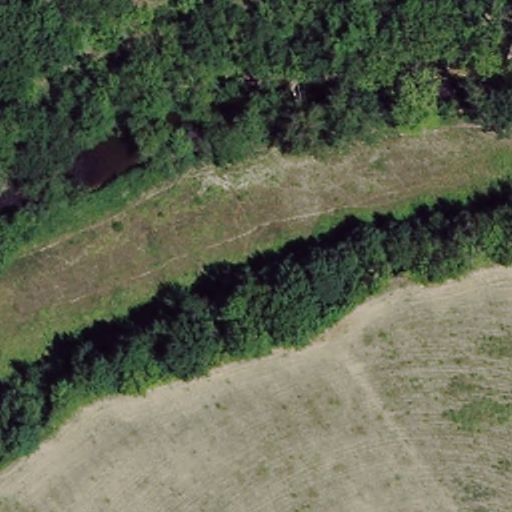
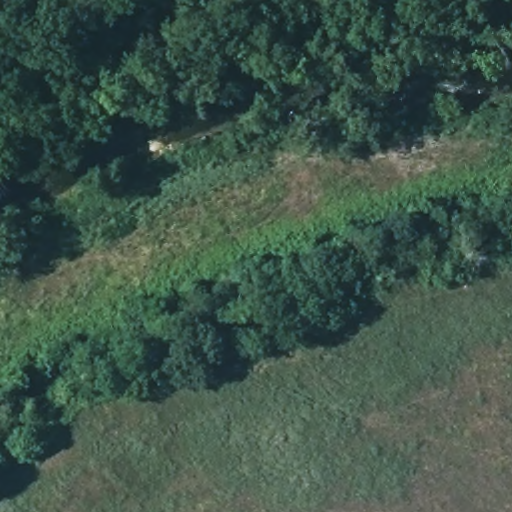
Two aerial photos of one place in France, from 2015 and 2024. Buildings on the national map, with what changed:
[]

